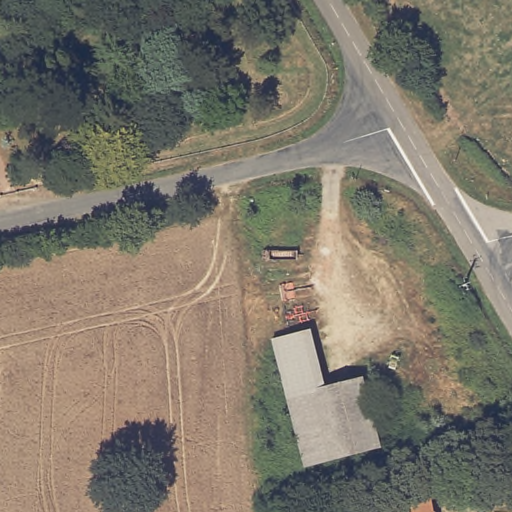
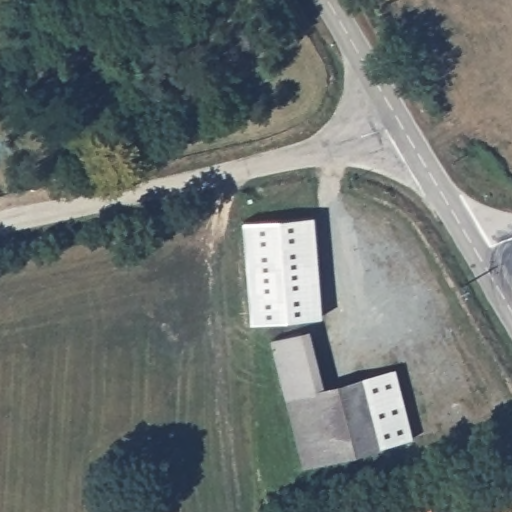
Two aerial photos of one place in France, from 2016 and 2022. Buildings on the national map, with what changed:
new [(250,321),(243,220),(315,215),(321,316),(250,321)]
unchanged [(284,397),(268,341),(299,333),(315,388),(284,397)]
new [(360,376),(395,369),(412,436),(378,444),(360,376)]
unchanged [(360,376),(378,444),(302,464),(284,397),(315,388),(360,376)]
unchanged [(428,495),(432,512),(351,512),(428,495)]

